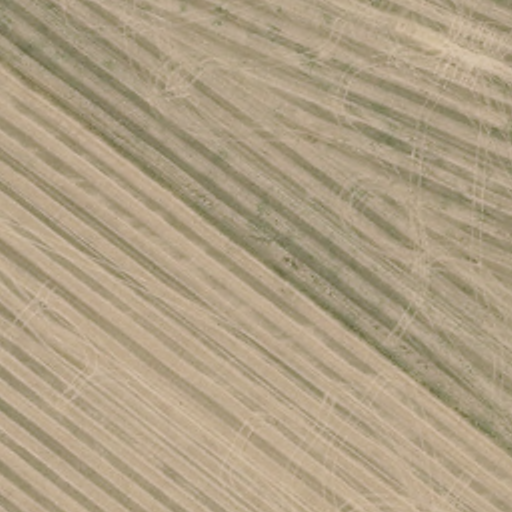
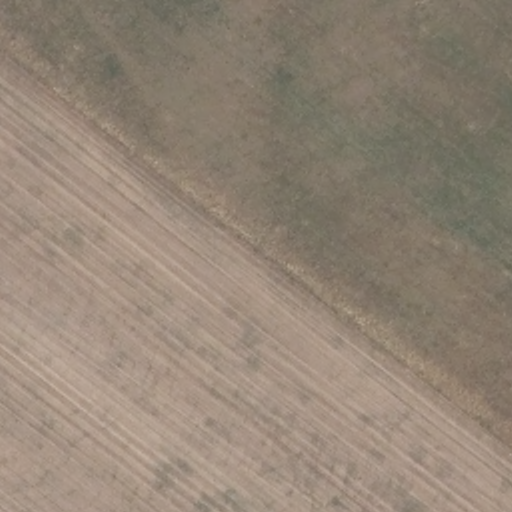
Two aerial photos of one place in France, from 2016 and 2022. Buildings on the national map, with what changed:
[]

